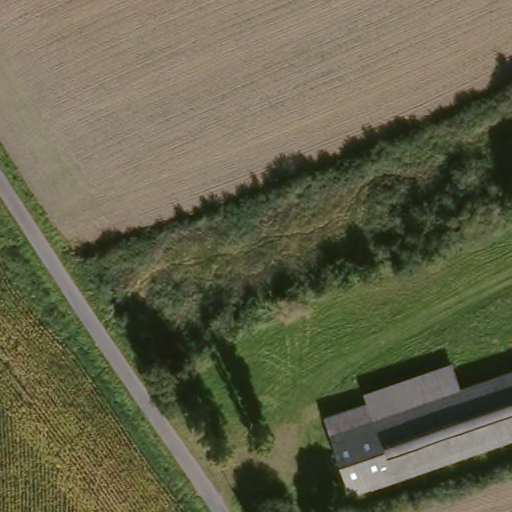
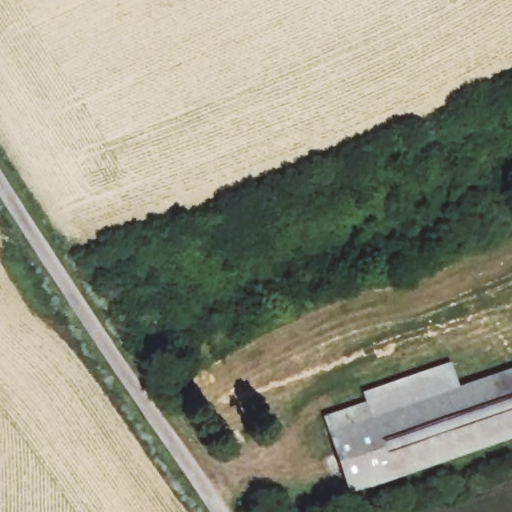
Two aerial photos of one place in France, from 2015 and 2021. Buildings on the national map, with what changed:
unchanged [(362,393),(452,363),(461,392),(373,422),(368,409),(362,393)]
unchanged [(373,422),(512,375),(512,437),(352,492),(328,423),(368,409),(373,422)]

